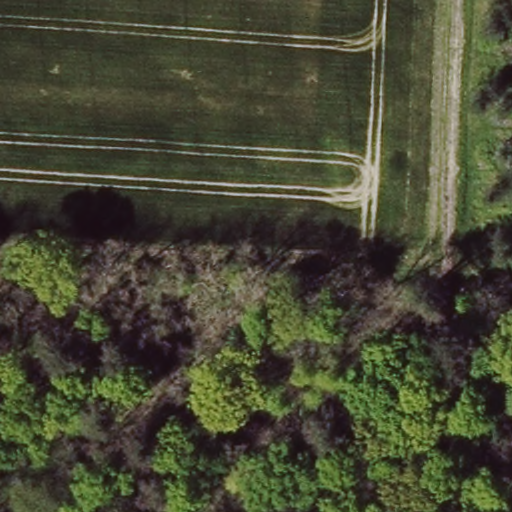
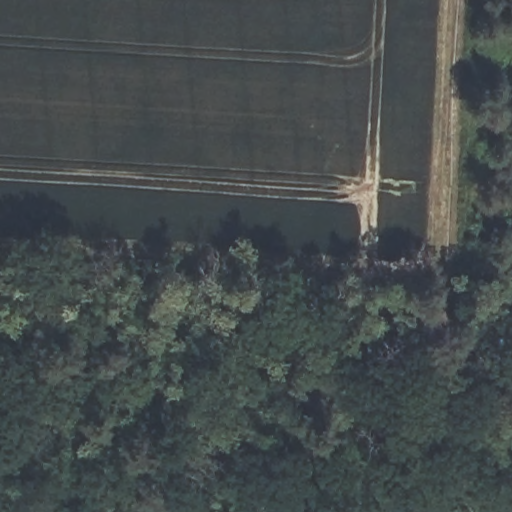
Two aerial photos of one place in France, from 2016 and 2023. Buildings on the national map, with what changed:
[]

